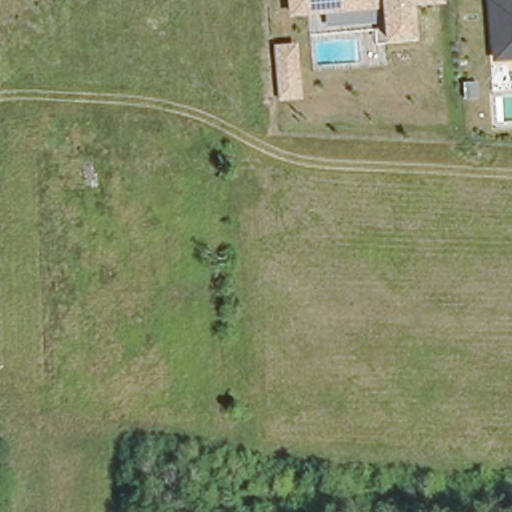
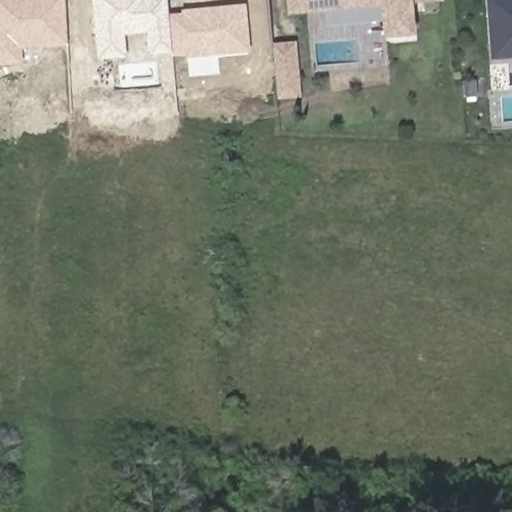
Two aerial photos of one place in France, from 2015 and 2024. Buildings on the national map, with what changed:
new [(69,48),(22,50),(23,65),(0,67),(0,0),(66,0),(69,48)]
new [(250,53),(186,60),(185,55),(172,57),(172,55),(149,57),(146,34),(124,36),(126,58),(99,61),(91,0),(167,0),(169,15),(182,14),(181,11),(246,5),(250,53)]
unchanged [(414,2),(416,39),(378,43),(374,7),(286,12),(285,0),(434,0),(414,2)]
unchanged [(488,56),(482,0),(512,0),(512,56),(488,56)]
unchanged [(300,97),(278,98),(274,43),(296,41),(300,97)]

